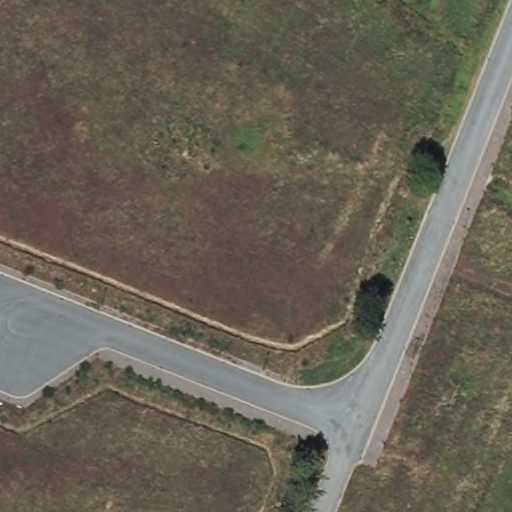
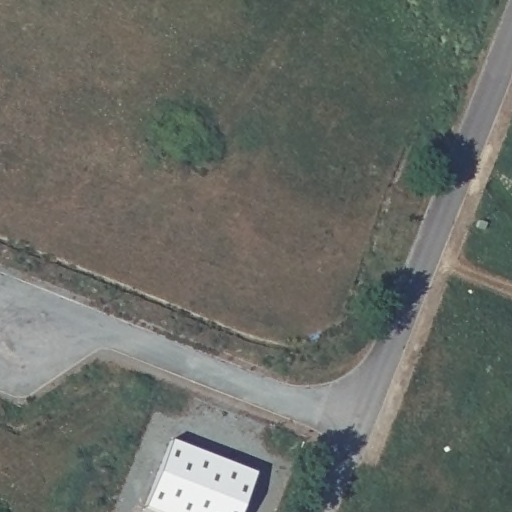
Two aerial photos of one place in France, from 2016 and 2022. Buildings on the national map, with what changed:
new [(257,476),(242,512),(155,512),(147,509),(173,443),(257,476)]

